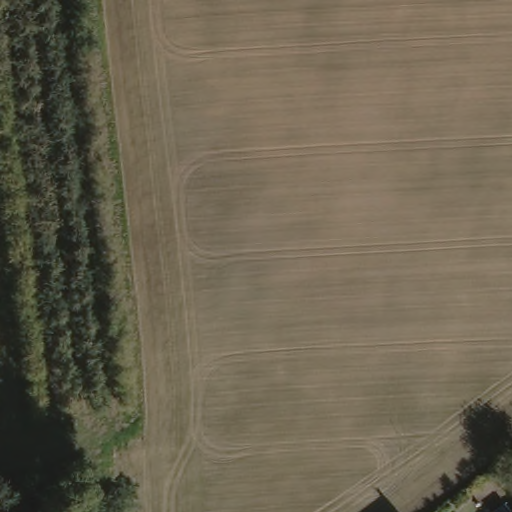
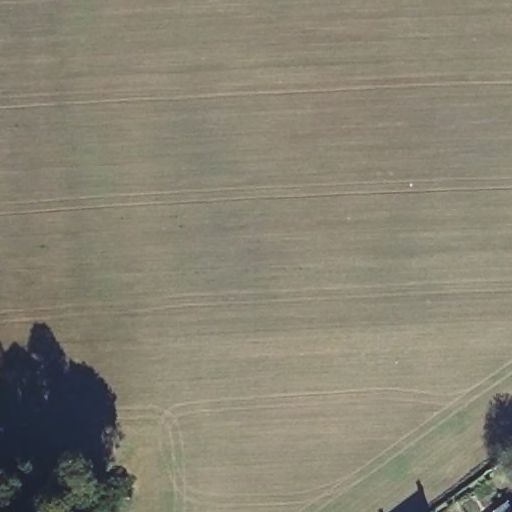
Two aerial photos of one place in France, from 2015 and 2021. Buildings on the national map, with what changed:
unchanged [(512,512),(501,512),(512,504),(512,512)]

